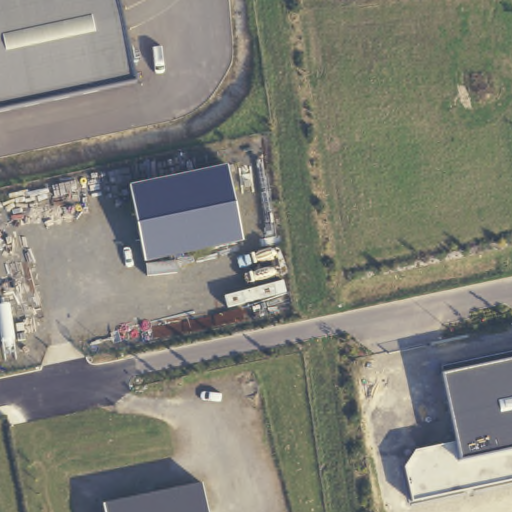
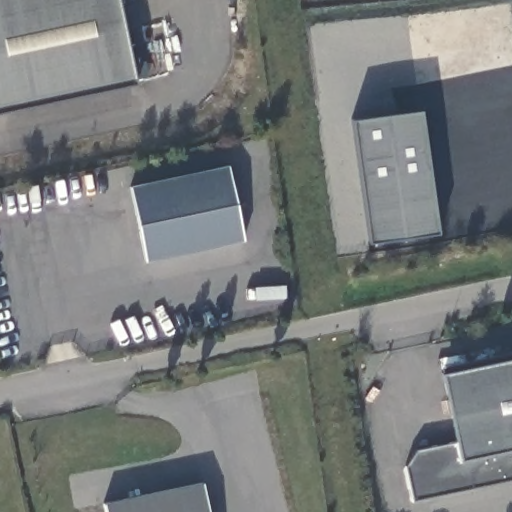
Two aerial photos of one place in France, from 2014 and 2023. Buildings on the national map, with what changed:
unchanged [(110,0),(129,84),(0,113),(0,0),(110,0)]
new [(352,117),(375,115),(371,100),(393,98),(397,112),(420,109),(438,233),(369,241),(352,117)]
unchanged [(227,163),(243,237),(145,259),(128,185),(227,163)]
unchanged [(405,466),(416,450),(458,441),(442,370),(512,356),(512,482),(413,502),(405,466)]
unchanged [(207,512),(100,512),(99,509),(201,487),(207,512)]

